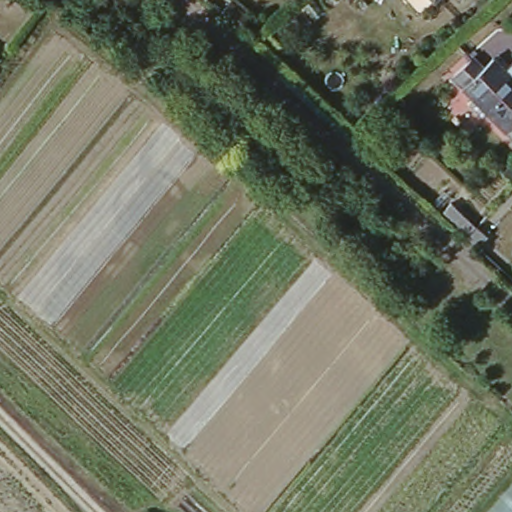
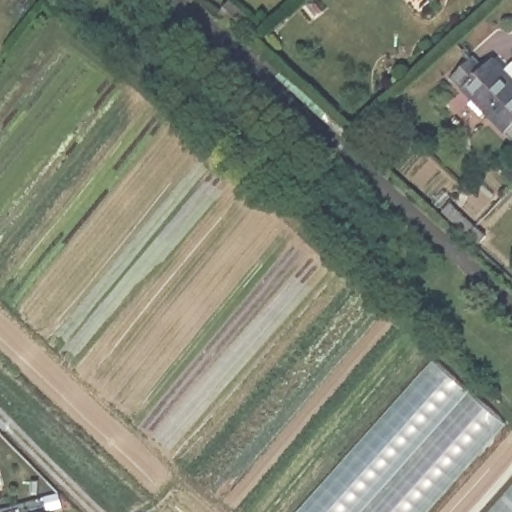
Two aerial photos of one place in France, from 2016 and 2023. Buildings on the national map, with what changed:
unchanged [(484,74),(495,64),(512,81),(512,139),(457,82),(475,65),(484,74)]
unchanged [(473,218),(482,229),(474,237),(463,227),(473,218)]
new [(429,512),(293,512),(428,359),(506,426),(429,512)]
new [(2,475),(0,476),(0,469),(2,475)]
unchanged [(512,512),(479,512),(512,476),(512,512)]
new [(52,512),(39,512),(51,509),(52,512)]

